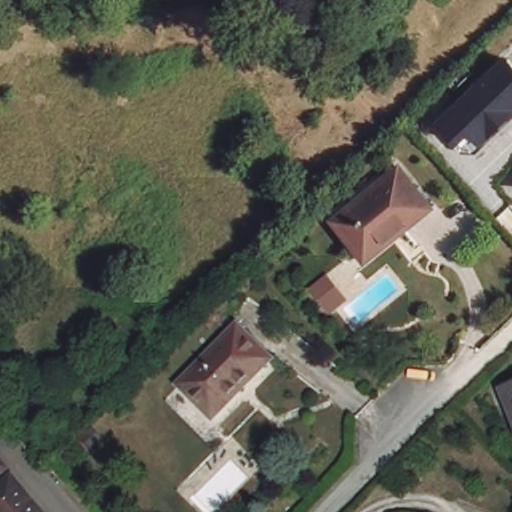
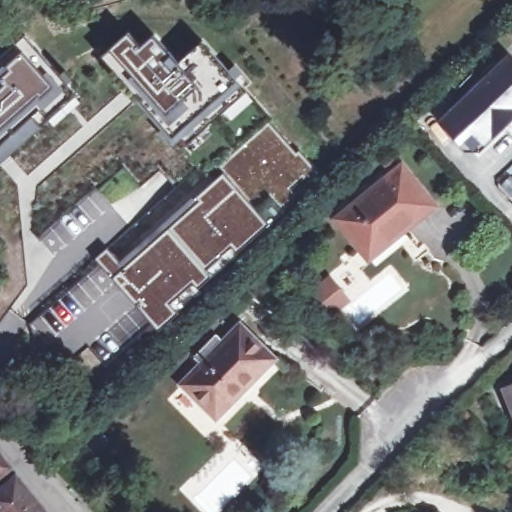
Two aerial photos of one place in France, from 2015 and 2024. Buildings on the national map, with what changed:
new [(184,148),(176,142),(102,60),(128,36),(142,50),(154,39),(179,64),(202,44),(247,91),(184,148)]
new [(5,81),(2,83),(0,81),(0,60),(25,37),(65,82),(62,85),(70,95),(46,115),(39,108),(36,105),(0,138),(0,93),(9,85),(5,81)]
unchanged [(505,50),(512,59),(512,102),(475,136),(459,136),(437,114),(505,50)]
new [(265,225),(238,252),(232,245),(205,270),(212,276),(200,287),(194,281),(167,303),(177,314),(160,330),(98,260),(107,251),(125,270),(202,202),(199,198),(225,176),(219,170),(267,126),(296,157),(300,154),(319,175),(309,182),(302,175),(288,190),(295,195),(283,206),(265,225)]
unchanged [(364,254),(338,221),(371,194),(374,197),(388,185),(385,180),(402,166),(434,206),(385,246),(369,260),(364,254)]
unchanged [(172,401),(185,388),(180,384),(240,322),(282,359),(220,421),(217,417),(205,430),(172,401)]
unchanged [(512,387),(512,423),(499,392),(512,387)]
unchanged [(0,448),(25,478),(0,498),(0,448)]
unchanged [(0,507),(0,498),(25,478),(53,512),(4,512),(0,507)]

